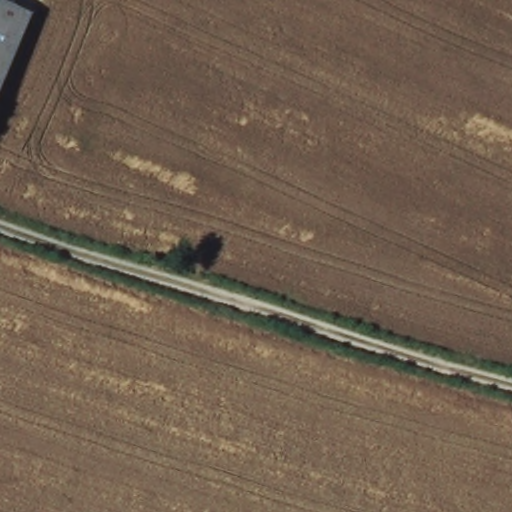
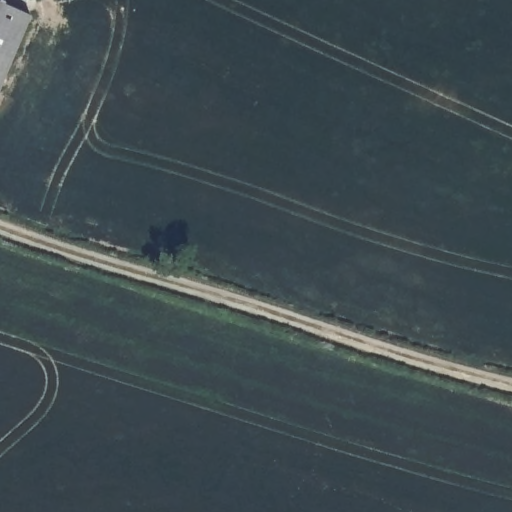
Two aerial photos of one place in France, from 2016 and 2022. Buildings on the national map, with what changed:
unchanged [(0,0),(31,13),(0,86),(0,0)]

